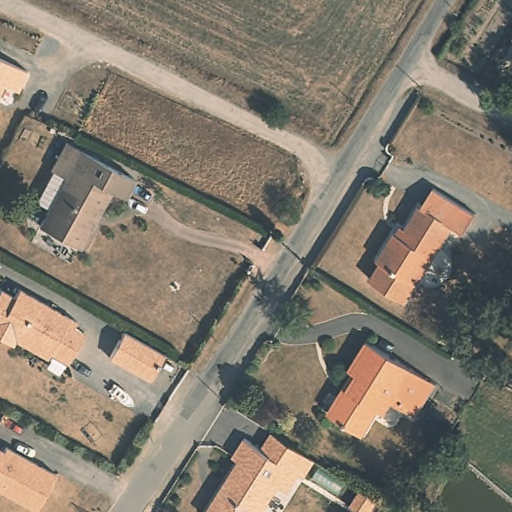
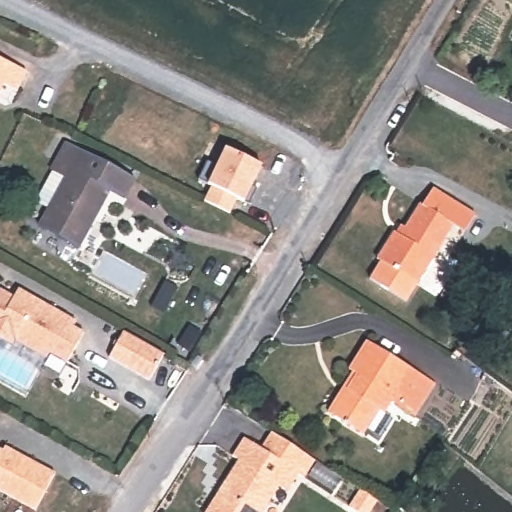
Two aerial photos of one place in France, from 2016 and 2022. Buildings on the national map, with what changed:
unchanged [(31,66),(22,86),(8,80),(1,96),(0,98),(0,51),(31,66)]
unchanged [(71,143),(139,179),(129,198),(115,190),(84,248),(45,226),(54,209),(41,202),(58,172),(56,170),(71,143)]
new [(211,187),(207,185),(225,149),(262,165),(245,203),(239,200),(231,214),(204,202),(211,187)]
unchanged [(401,294),(370,274),(380,257),(377,254),(394,228),(400,232),(420,199),(422,200),(433,183),(475,210),(464,228),(453,221),(417,279),(407,297),(401,294)]
unchanged [(84,342),(72,363),(55,353),(52,359),(20,340),(17,346),(0,336),(0,299),(5,289),(19,297),(23,289),(81,322),(78,327),(89,333),(84,342)]
unchanged [(134,327),(174,349),(159,376),(119,353),(134,327)]
unchanged [(384,409),(379,405),(363,430),(328,409),(340,389),(353,368),(349,365),(367,337),(432,377),(436,379),(415,413),(411,409),(399,402),(391,397),(384,409)]
unchanged [(272,427),(315,456),(304,473),(298,469),(288,487),(279,481),(260,512),(206,512),(204,511),(239,456),(232,452),(244,434),(261,444),(272,427)]
unchanged [(3,452),(5,447),(55,474),(35,511),(0,491),(0,450),(3,452)]
unchanged [(358,506),(343,496),(351,484),(366,494),(358,506)]

